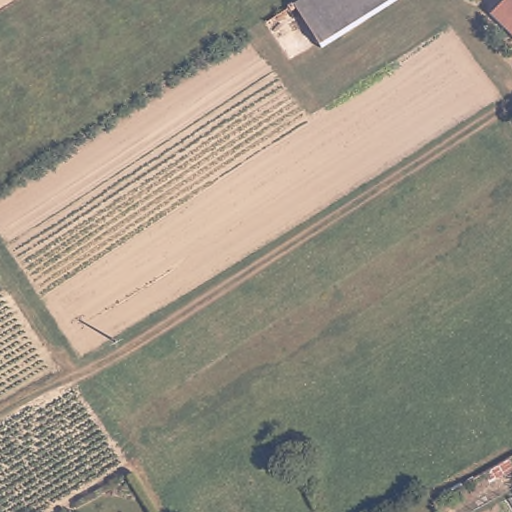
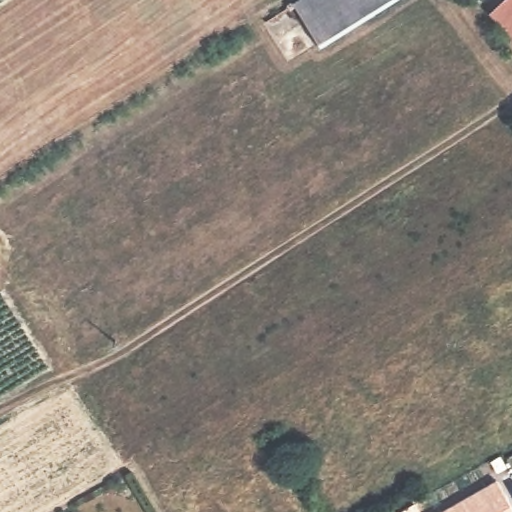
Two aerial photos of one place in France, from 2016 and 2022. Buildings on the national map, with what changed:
unchanged [(321,45),(295,3),(300,0),(395,0),(321,45)]
unchanged [(504,0),(512,0),(512,34),(491,14),(504,0)]
new [(512,506),(512,512),(443,512),(497,481),(512,506)]

